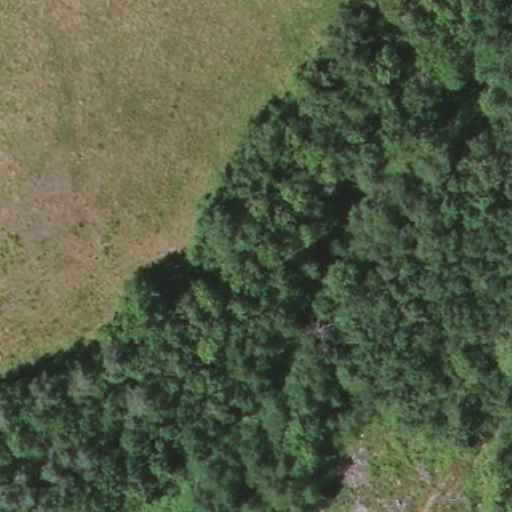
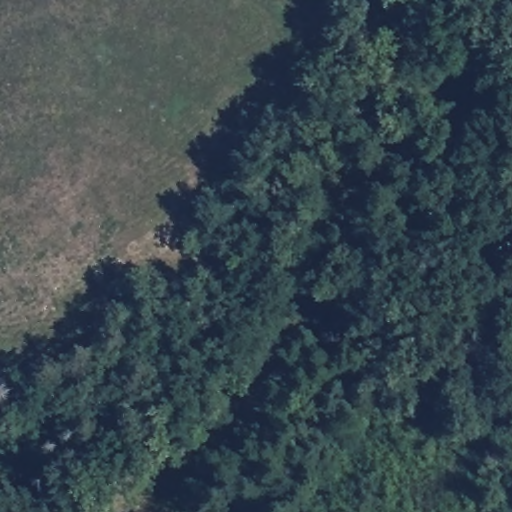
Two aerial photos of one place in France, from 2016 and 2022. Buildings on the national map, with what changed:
[]

